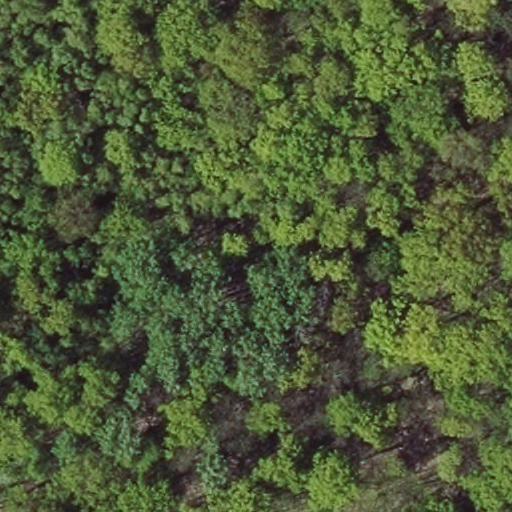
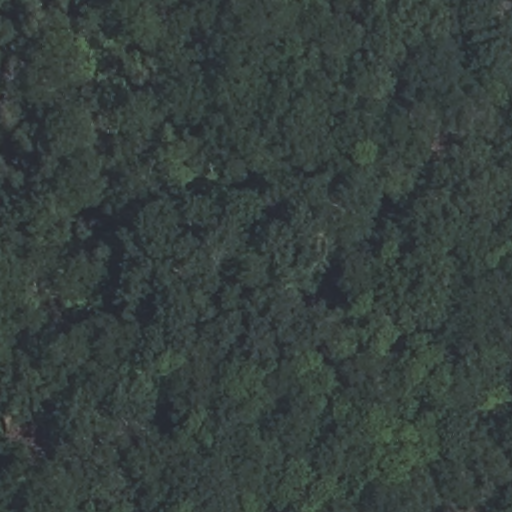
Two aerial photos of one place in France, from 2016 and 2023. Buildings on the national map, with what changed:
[]

